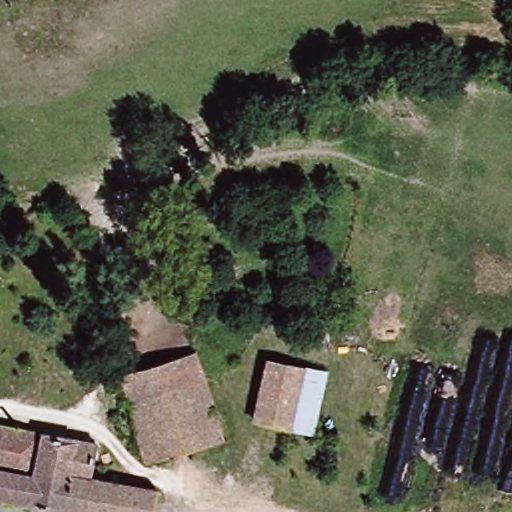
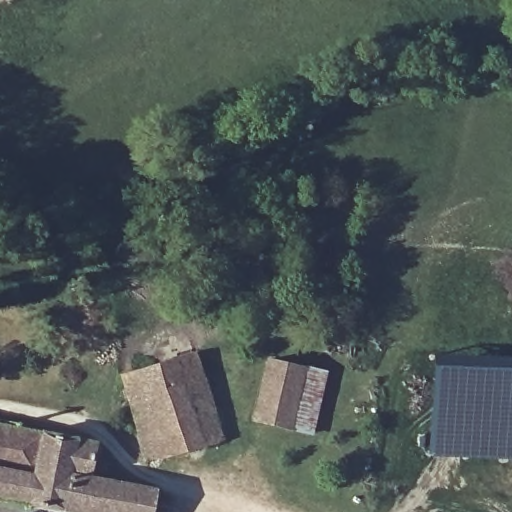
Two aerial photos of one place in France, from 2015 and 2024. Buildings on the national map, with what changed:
unchanged [(119,377),(194,356),(219,443),(145,464),(119,377)]
unchanged [(263,422),(278,364),(311,372),(296,430),(263,422)]
new [(430,364),(512,367),(512,460),(427,456),(430,364)]
unchanged [(91,459),(135,471),(131,488),(0,466),(0,424),(95,443),(91,459)]
unchanged [(0,501),(0,466),(131,488),(152,492),(148,512),(72,512),(0,501)]

